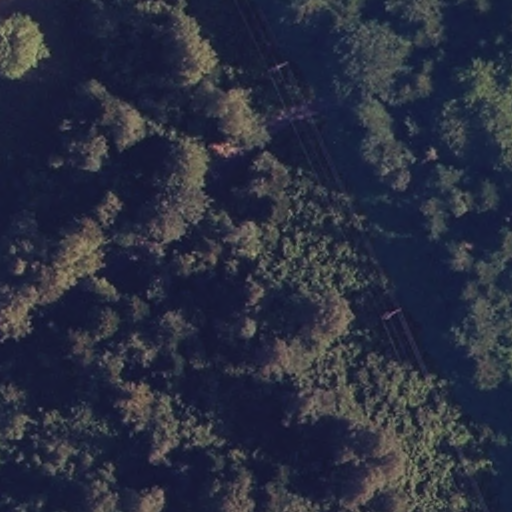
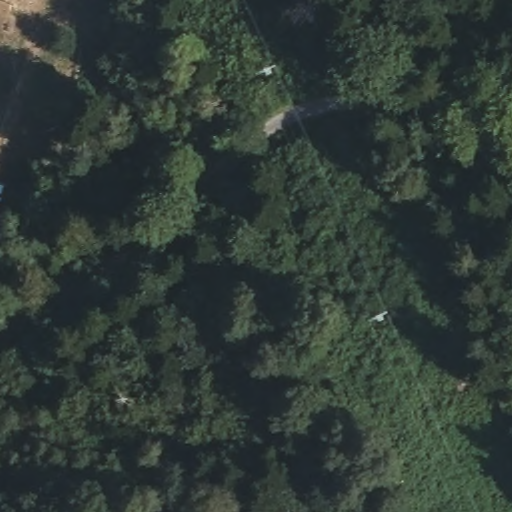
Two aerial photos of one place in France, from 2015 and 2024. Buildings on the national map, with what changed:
[]

